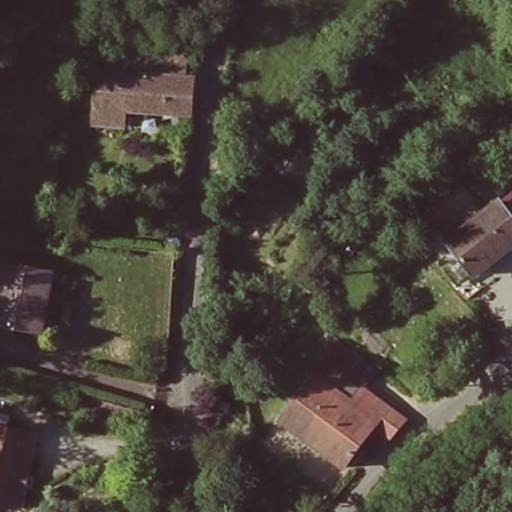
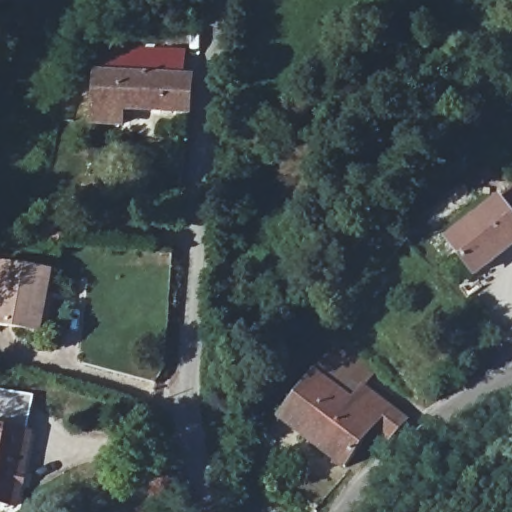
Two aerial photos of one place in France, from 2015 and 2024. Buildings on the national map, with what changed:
unchanged [(118,106),(114,122),(85,119),(91,45),(198,54),(194,110),(118,106)]
unchanged [(512,213),(512,245),(479,276),(448,240),(498,197),(512,213)]
unchanged [(53,297),(43,293),(36,330),(0,322),(0,275),(3,264),(58,275),(53,297)]
unchanged [(378,416),(349,461),(280,424),(306,374),(348,396),(349,394),(358,379),(404,404),(394,424),(378,416)]
unchanged [(16,507),(0,503),(0,422),(30,431),(16,507)]

